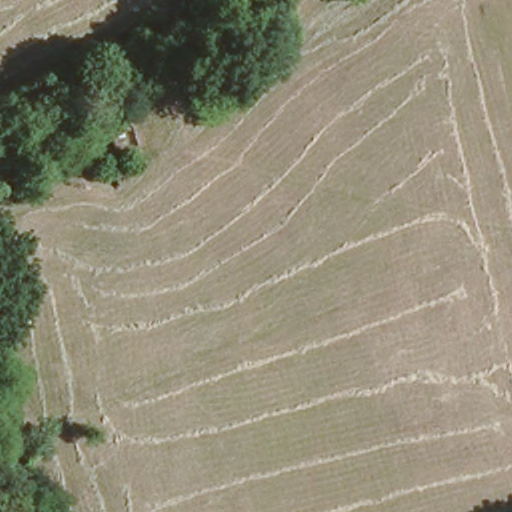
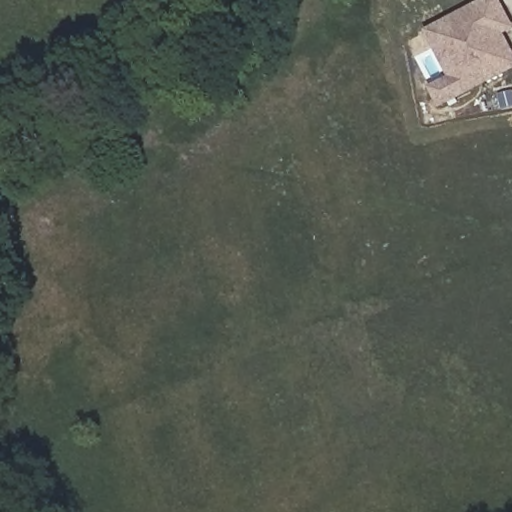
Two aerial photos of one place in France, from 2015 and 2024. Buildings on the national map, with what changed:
new [(502,0),(512,20),(512,33),(506,36),(512,47),(512,72),(442,108),(432,87),(450,77),(428,32),(486,0),(502,0)]

